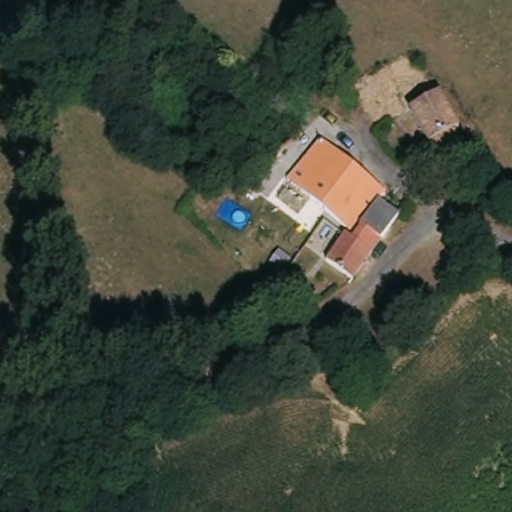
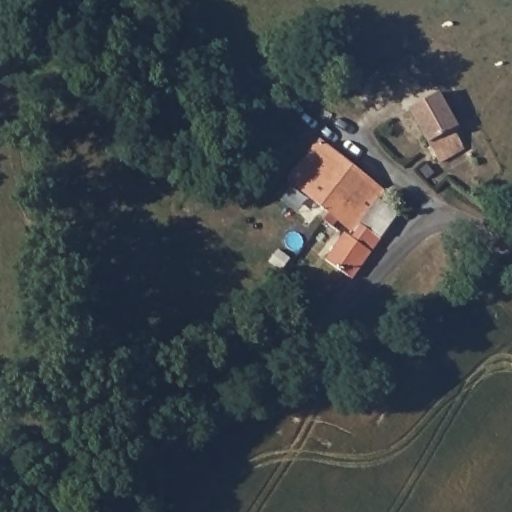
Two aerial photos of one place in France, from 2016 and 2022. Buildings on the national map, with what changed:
unchanged [(438,96),(442,94),(461,129),(453,134),(464,154),(446,164),(415,110),(438,96)]
unchanged [(386,237),(355,280),(329,259),(349,232),(356,237),(359,234),(292,180),(326,140),(389,191),(383,200),(402,214),(386,237)]

